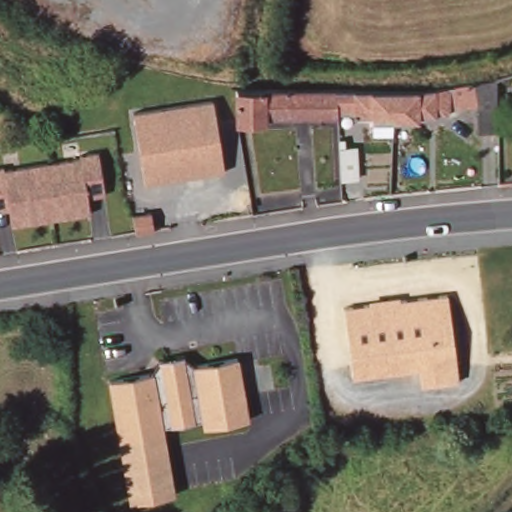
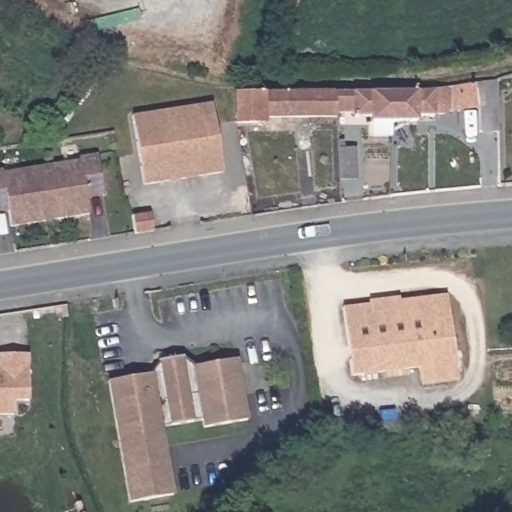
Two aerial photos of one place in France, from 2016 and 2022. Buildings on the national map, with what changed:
unchanged [(387,121),(387,105),(388,104),(388,92),(398,92),(406,92),(420,91),(437,91),(442,91),(443,91),(449,91),(452,91),(453,91),(455,90),(464,90),(486,86),(494,85),(498,85),(500,85),(500,90),(500,91),(500,92),(500,114),(501,120),(501,133),(501,136),(501,139),(501,140),(481,140),(479,107),(452,109),(446,112),(436,112),(436,115),(420,116),(420,121),(391,121),(387,121)]
unchanged [(361,93),(367,93),(368,93),(385,92),(387,92),(388,92),(388,104),(387,105),(387,121),(391,121),(391,127),(391,133),(391,134),(373,135),(373,122),(371,122),(371,117),(355,117),(355,114),(338,114),(338,105),(337,94),(361,93)]
unchanged [(339,119),(267,120),(267,126),(239,127),(238,119),(238,115),(238,107),(237,104),(237,96),(238,96),(240,96),(254,95),(259,95),(261,95),(267,95),(292,95),(307,95),(325,94),(337,94),(338,105),(338,114),(339,119)]
unchanged [(213,102),(223,174),(138,186),(128,115),(213,102)]
unchanged [(343,140),(343,145),(352,145),(355,177),(338,179),(336,140),(343,140)]
unchanged [(87,197),(89,217),(9,229),(6,211),(0,212),(0,168),(97,152),(103,195),(87,197)]
unchanged [(131,227),(129,210),(146,207),(148,225),(131,227)]
unchanged [(425,386),(423,368),(354,377),(346,309),(450,296),(458,364),(460,381),(425,386)]
unchanged [(160,425),(172,492),(129,500),(109,378),(149,371),(160,357),(183,353),(196,364),(236,357),(247,419),(204,426),(202,418),(160,425)]
new [(29,401),(14,400),(14,416),(0,416),(0,355),(30,355),(29,401)]

